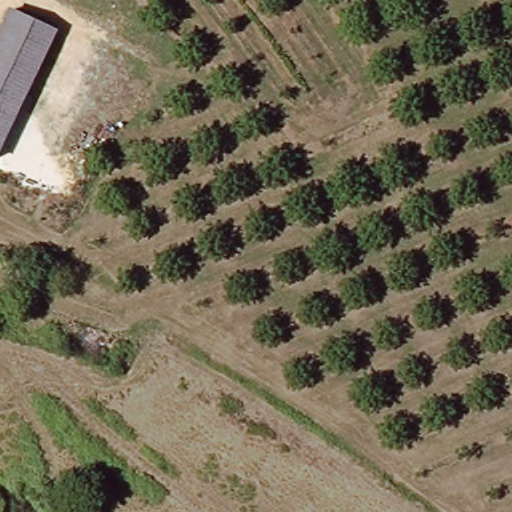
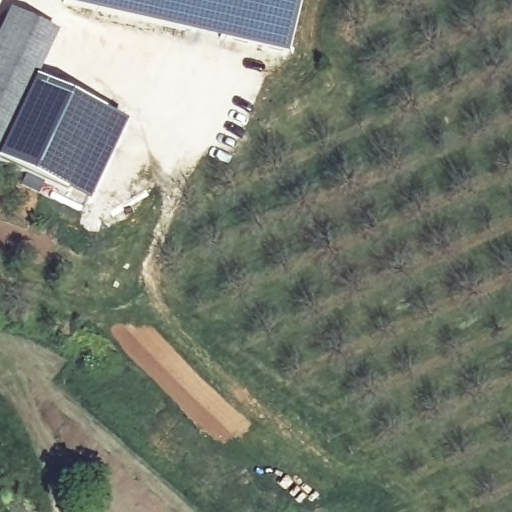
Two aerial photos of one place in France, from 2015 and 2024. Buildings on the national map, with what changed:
new [(300,0),(287,55),(62,5),(64,0),(300,0)]
unchanged [(57,36),(0,157),(0,37),(10,15),(57,36)]
new [(87,203),(0,161),(0,157),(36,80),(127,124),(87,203)]

